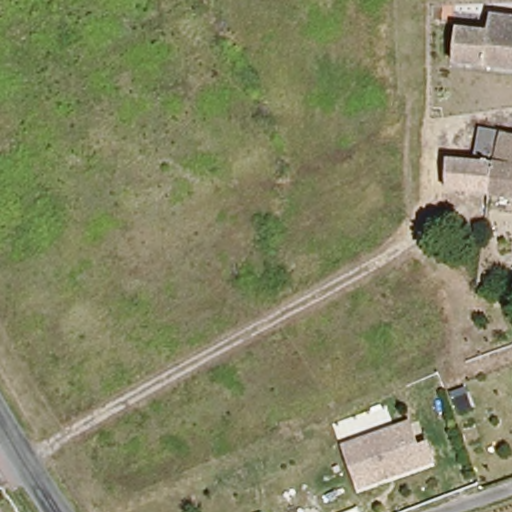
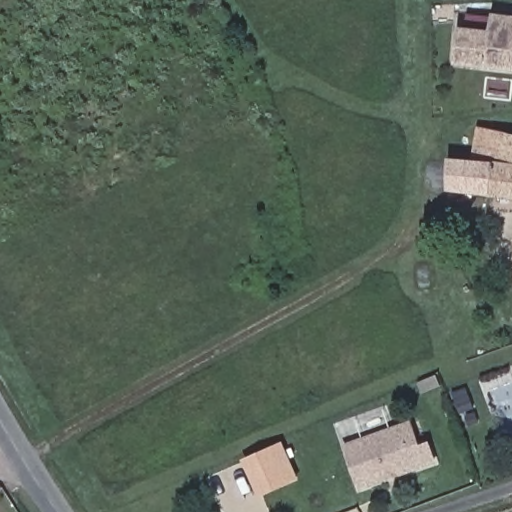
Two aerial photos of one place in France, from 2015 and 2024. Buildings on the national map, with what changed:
unchanged [(446,63),(451,27),(480,31),(482,14),(512,17),(512,71),(446,63)]
unchanged [(479,196),(483,161),(489,161),(492,128),(512,130),(512,199),(479,196)]
unchanged [(479,196),(440,192),(441,160),(483,161),(479,196)]
unchanged [(414,424),(422,447),(431,443),(437,460),(364,486),(350,447),(414,424)]
new [(299,481),(258,499),(240,460),(282,441),(299,481)]

